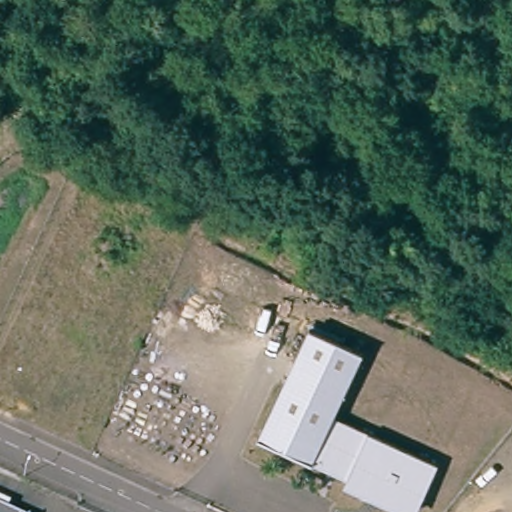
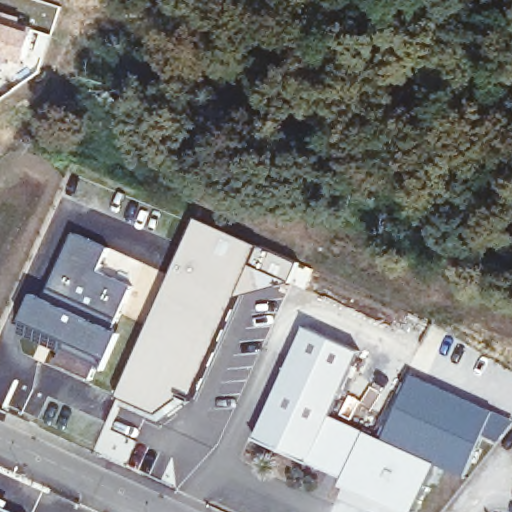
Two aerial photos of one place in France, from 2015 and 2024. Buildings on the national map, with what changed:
new [(24,16),(21,26),(36,30),(25,62),(0,56),(0,9),(24,16)]
new [(197,217),(299,262),(289,281),(238,296),(194,401),(188,399),(158,421),(120,405),(117,394),(197,217)]
new [(73,231),(111,247),(102,268),(135,283),(115,328),(43,296),(73,231)]
new [(35,292),(43,296),(115,328),(122,332),(104,369),(97,366),(91,379),(56,363),(61,352),(20,329),(35,292)]
unchanged [(308,326),(361,353),(329,417),(432,469),(410,512),(404,512),(340,480),(306,463),(253,436),(308,326)]
new [(414,373),(512,419),(512,425),(499,441),(484,434),(466,475),(437,463),(432,469),(381,443),(414,373)]
unchanged [(20,512),(0,512),(0,503),(20,512)]

